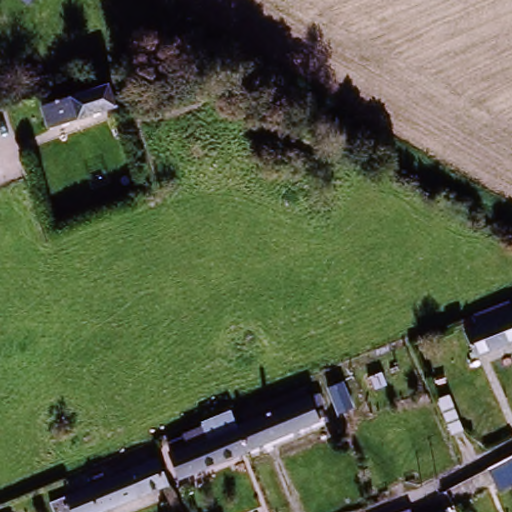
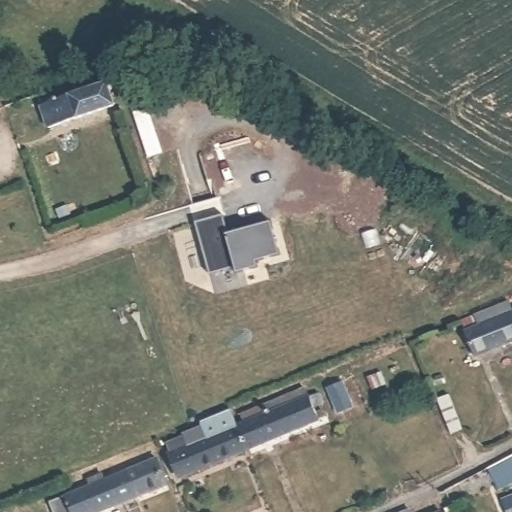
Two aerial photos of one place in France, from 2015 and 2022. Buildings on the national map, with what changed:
unchanged [(44,131),(35,102),(62,94),(64,99),(98,89),(105,112),(44,131)]
unchanged [(10,108),(21,144),(0,150),(0,111),(10,108)]
new [(257,265),(259,270),(238,276),(237,270),(211,277),(197,226),(224,219),(230,241),(273,229),(281,258),(257,265)]
unchanged [(475,330),(471,316),(502,303),(507,316),(512,328),(512,344),(471,361),(462,335),(475,330)]
unchanged [(512,328),(507,316),(512,314),(512,328)]
unchanged [(346,403),(337,379),(352,373),(361,397),(346,403)]
unchanged [(319,387),(329,411),(262,438),(253,415),(319,387)]
unchanged [(432,405),(444,400),(458,436),(446,441),(432,405)]
unchanged [(262,438),(194,467),(184,442),(253,415),(262,438)]
unchanged [(70,491),(80,487),(167,452),(177,475),(89,511),(88,512),(67,512),(59,495),(70,491)]
unchanged [(488,468),(512,458),(512,486),(498,492),(488,468)]
unchanged [(409,512),(397,512),(407,507),(409,512)]
unchanged [(445,512),(444,512),(445,511),(445,512)]

